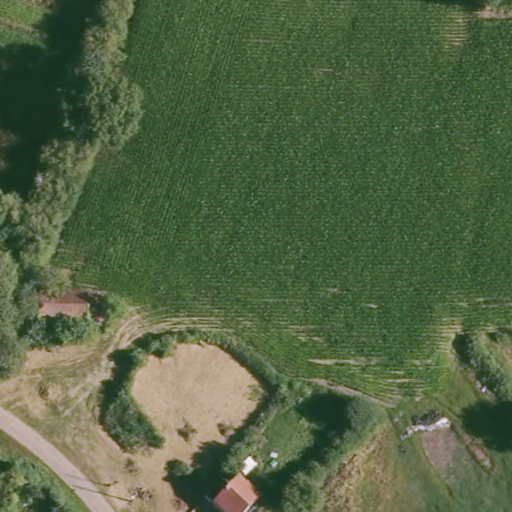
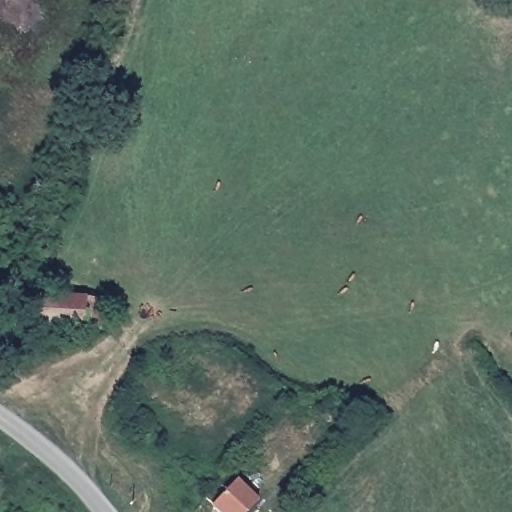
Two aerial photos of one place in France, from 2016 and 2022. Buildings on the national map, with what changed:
unchanged [(45,295),(99,298),(98,327),(46,325),(45,295)]
unchanged [(224,481),(230,487),(242,479),(270,512),(220,512),(206,496),(224,481)]

